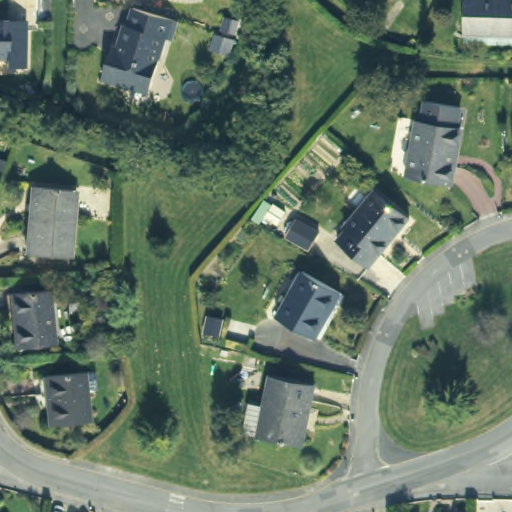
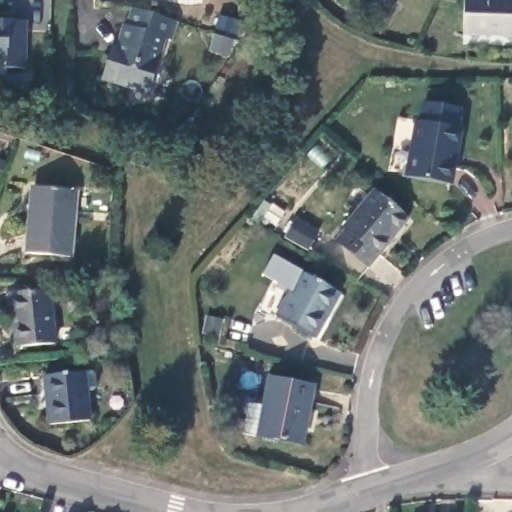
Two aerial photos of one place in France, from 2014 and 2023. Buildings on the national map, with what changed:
unchanged [(465,39),(464,0),(512,0),(512,40),(465,39)]
unchanged [(104,81),(111,56),(113,48),(119,50),(126,26),(129,28),(134,10),(177,23),(172,41),(166,40),(152,90),(150,95),(127,88),(104,81)]
unchanged [(26,35),(25,65),(7,65),(3,60),(0,59),(0,20),(3,21),(25,21),(26,35)]
unchanged [(423,104),(458,107),(456,127),(459,128),(453,183),(412,177),(417,123),(421,123),(423,104)]
unchanged [(74,192),(67,259),(24,256),(30,188),(74,192)]
unchanged [(402,216),(375,269),(340,250),(346,240),(341,237),(365,195),(402,216)]
unchanged [(339,291),(317,335),(278,314),(302,270),(339,291)]
unchanged [(54,291),(57,346),(17,348),(15,292),(54,291)]
unchanged [(87,371),(91,420),(51,422),(49,373),(87,371)]
unchanged [(316,384),(307,443),(247,433),(251,403),(270,405),(274,378),(316,384)]

